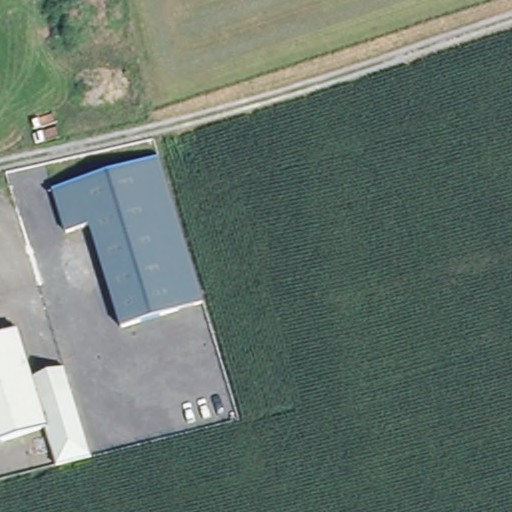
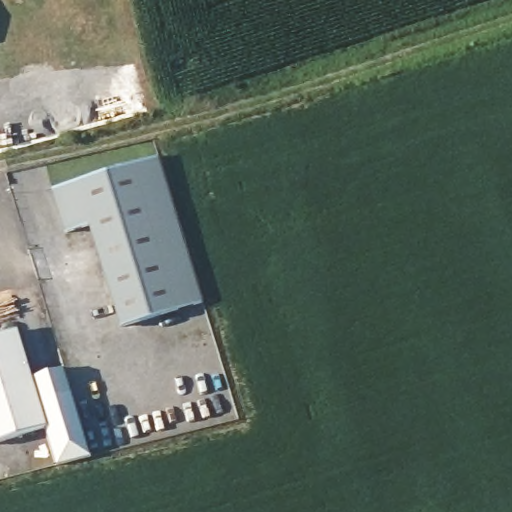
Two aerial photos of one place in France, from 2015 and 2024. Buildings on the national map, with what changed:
unchanged [(198,306),(115,330),(86,235),(60,241),(46,194),(155,162),(198,306)]
unchanged [(0,446),(0,339),(17,334),(28,372),(61,362),(90,457),(50,467),(40,435),(0,446)]

